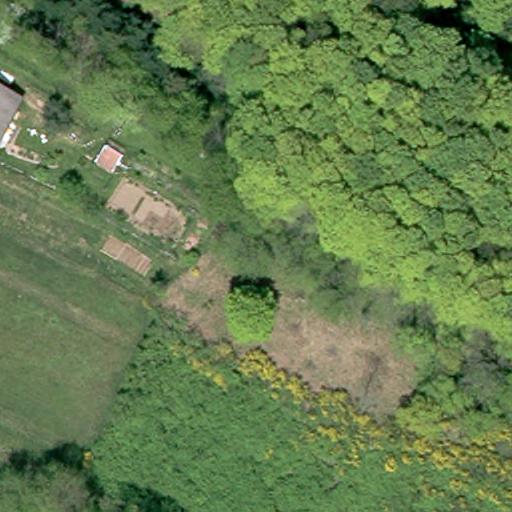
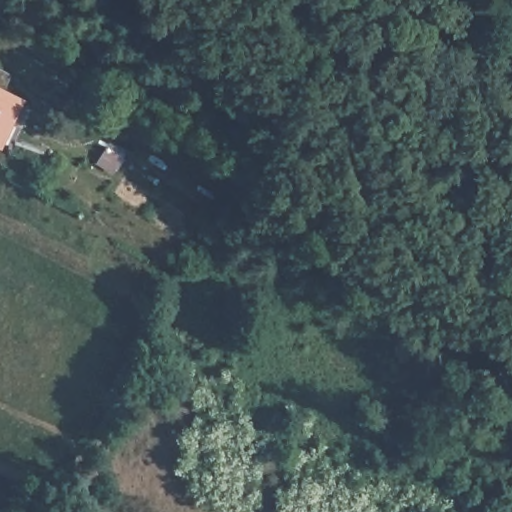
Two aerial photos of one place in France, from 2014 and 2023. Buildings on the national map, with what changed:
unchanged [(0,92),(20,104),(0,135),(0,92)]

